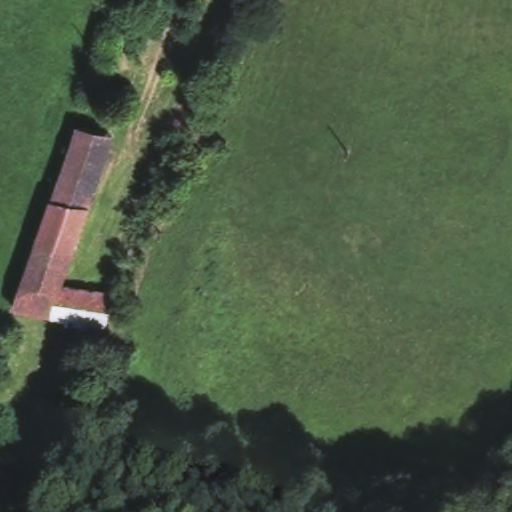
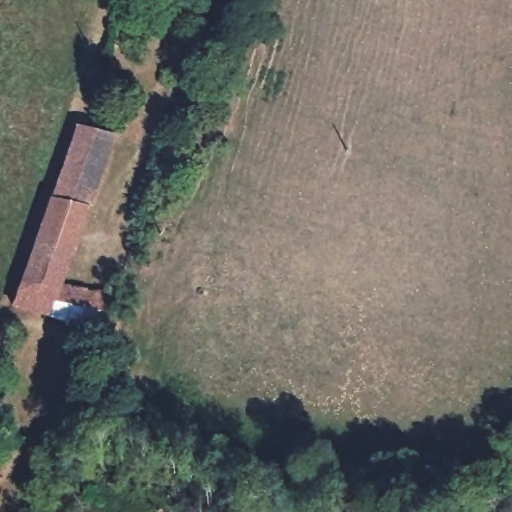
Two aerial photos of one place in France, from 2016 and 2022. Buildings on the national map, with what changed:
unchanged [(51,197),(78,123),(116,135),(93,205),(67,282),(114,290),(112,308),(115,308),(112,328),(16,304),(51,197)]

